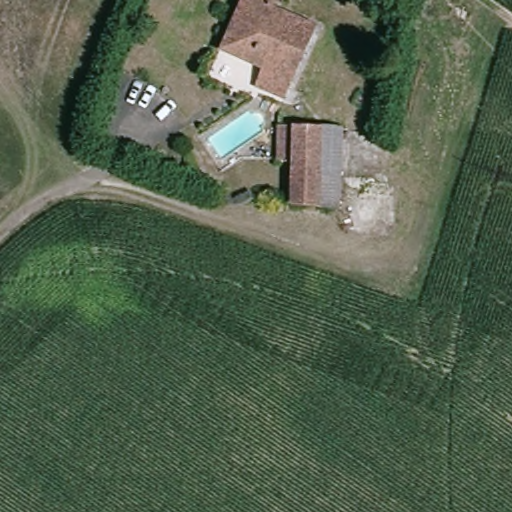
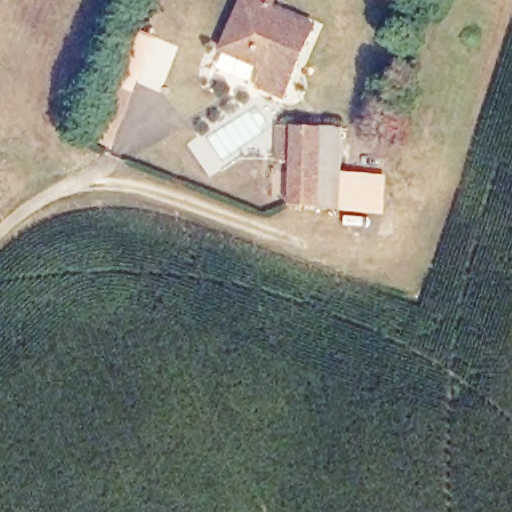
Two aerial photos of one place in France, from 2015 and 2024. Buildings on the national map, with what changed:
unchanged [(282,7),(318,25),(286,98),(257,86),(267,65),(231,48),(255,0),(286,0),(282,7)]
unchanged [(297,201),(302,164),(280,160),(286,129),(307,132),(352,138),(343,208),(297,201)]
new [(383,213),(340,210),(341,207),(343,208),(347,171),(386,174),(383,213)]

